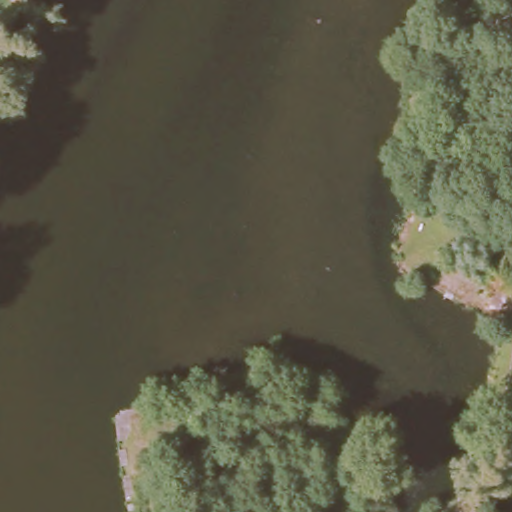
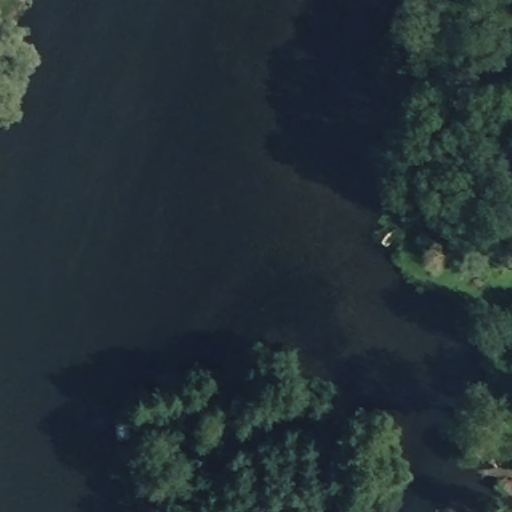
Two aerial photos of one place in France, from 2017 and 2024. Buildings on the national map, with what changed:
[]

